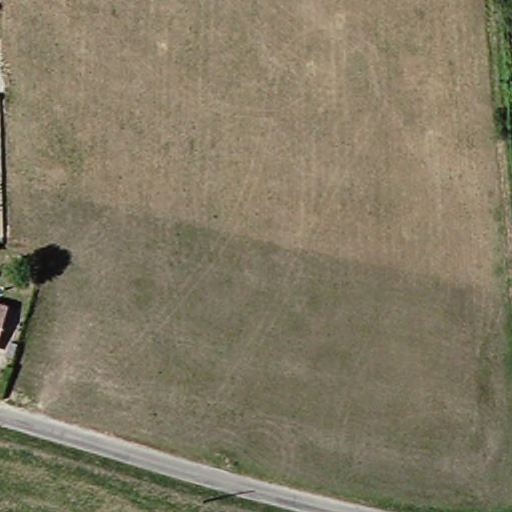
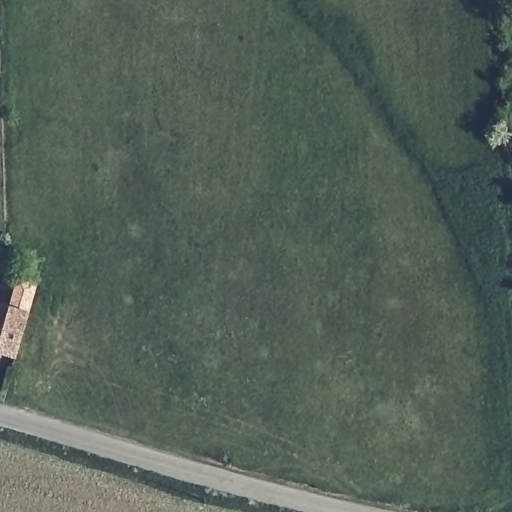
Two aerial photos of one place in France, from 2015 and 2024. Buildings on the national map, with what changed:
unchanged [(6,312),(0,333),(0,310),(6,312)]

